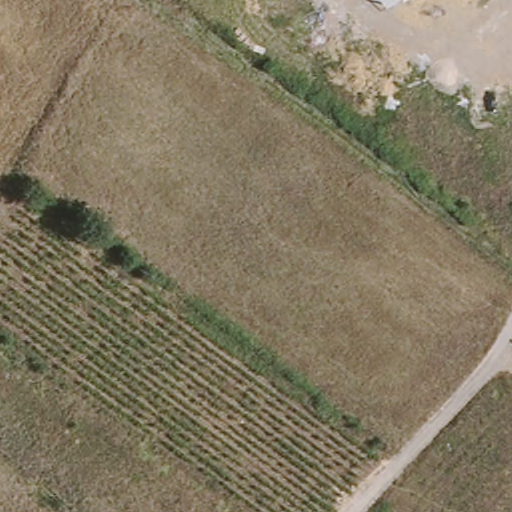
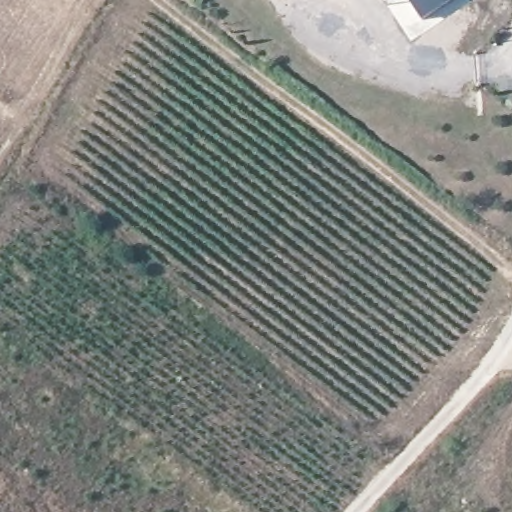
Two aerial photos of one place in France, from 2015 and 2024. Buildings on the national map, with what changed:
unchanged [(389,6),(385,0),(399,0),(389,6)]
new [(424,23),(409,0),(457,0),(424,23)]

